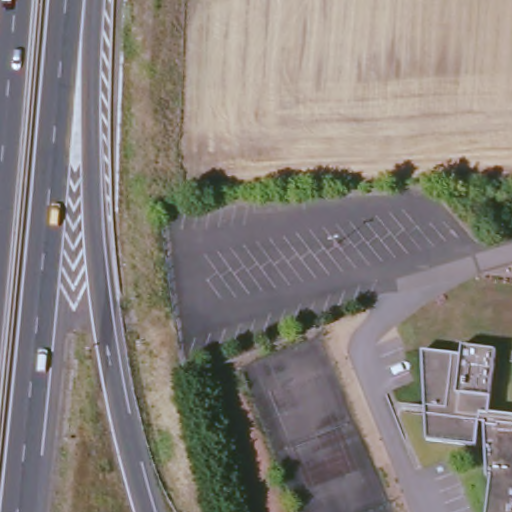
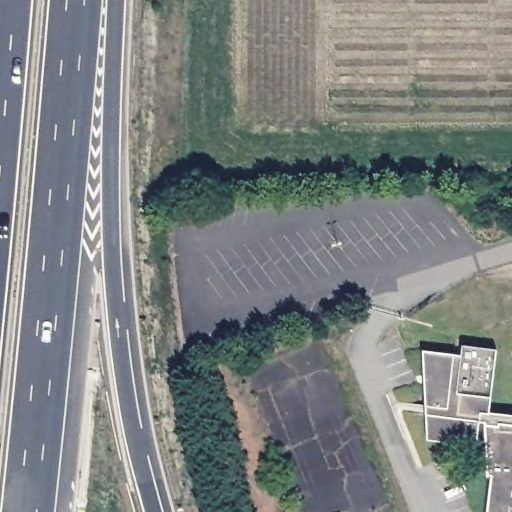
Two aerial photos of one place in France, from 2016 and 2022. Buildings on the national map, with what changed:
unchanged [(489,478),(486,477),(483,423),(477,423),(475,447),(425,442),(429,408),(424,408),(430,352),(469,357),(470,347),(505,352),(497,415),(512,416),(512,512),(485,512),(489,478)]

